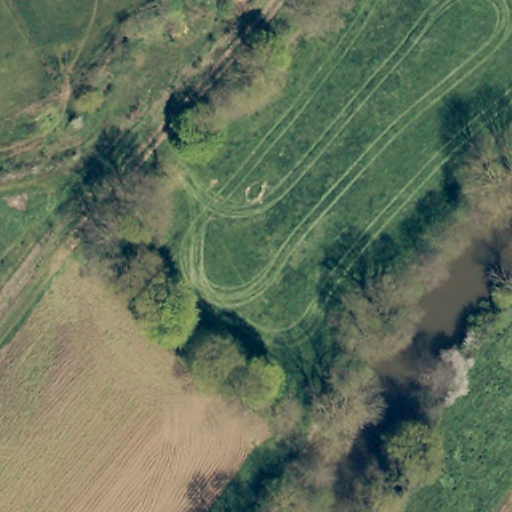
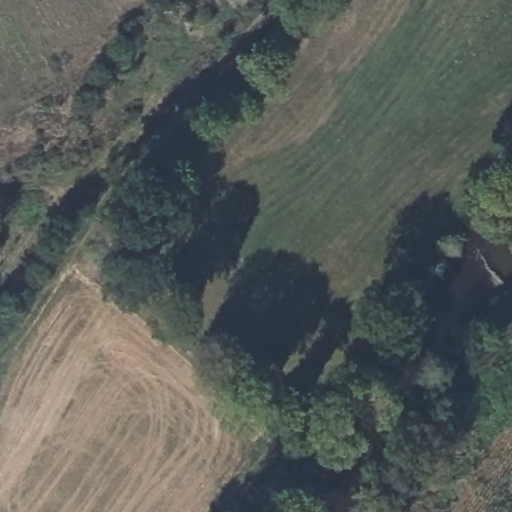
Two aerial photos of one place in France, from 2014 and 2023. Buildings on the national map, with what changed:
[]

